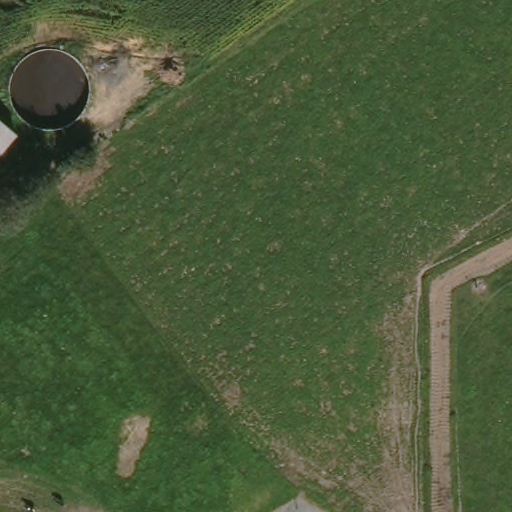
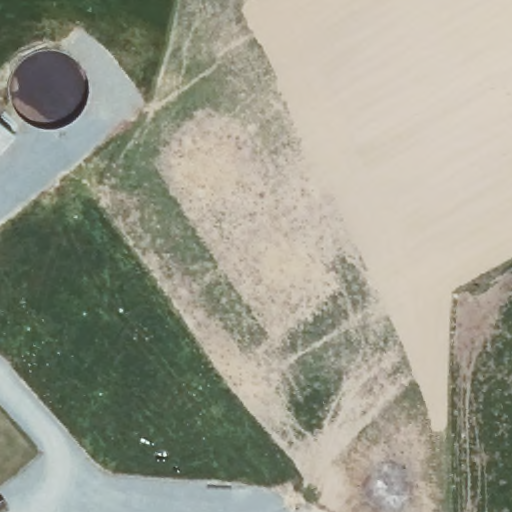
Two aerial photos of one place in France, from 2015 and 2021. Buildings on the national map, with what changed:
unchanged [(0,152),(0,112),(20,128),(0,152)]

